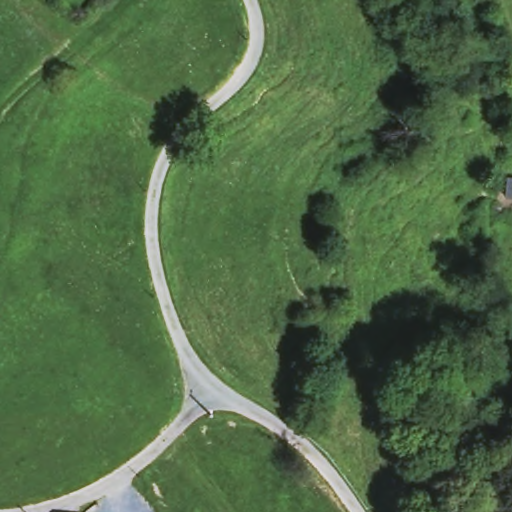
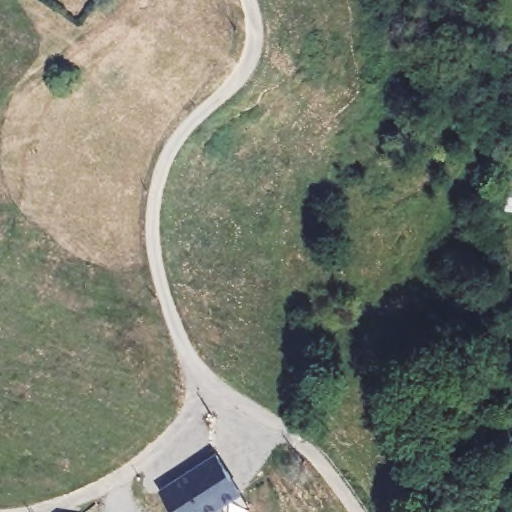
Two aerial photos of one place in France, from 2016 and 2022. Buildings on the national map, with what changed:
new [(242,493),(251,507),(244,512),(175,512),(160,490),(218,452),(242,493)]

